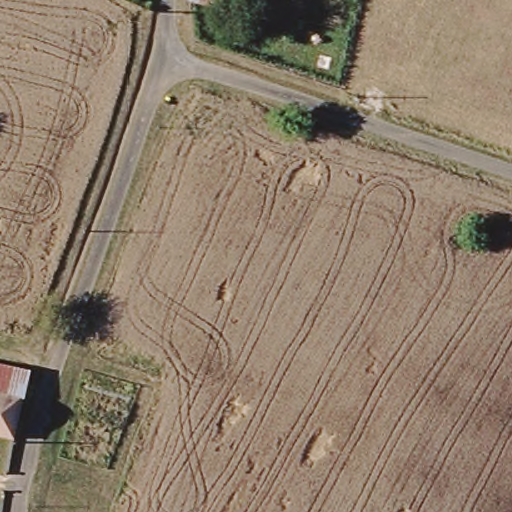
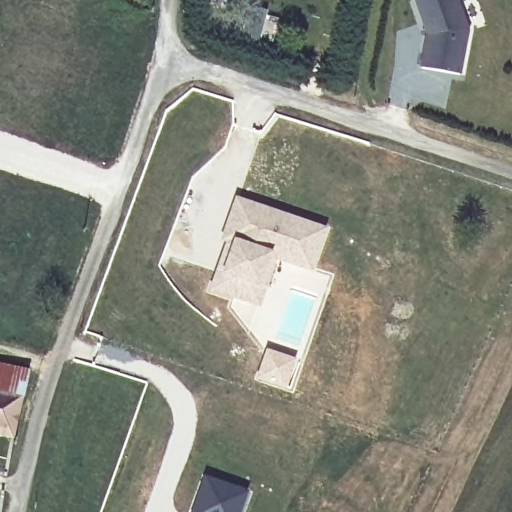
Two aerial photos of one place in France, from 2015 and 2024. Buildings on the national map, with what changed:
unchanged [(220,8),(190,1),(190,0),(221,0),(220,8)]
new [(470,32),(462,76),(425,68),(431,35),(419,0),(459,0),(470,32)]
new [(253,303),(212,288),(218,271),(229,242),(223,240),(237,201),(323,231),(310,270),(275,258),(258,306),(253,303)]
unchanged [(23,395),(0,391),(0,364),(29,368),(23,395)]
unchanged [(15,438),(0,436),(0,391),(23,395),(15,438)]
new [(246,493),(239,512),(194,512),(206,479),(246,493)]

